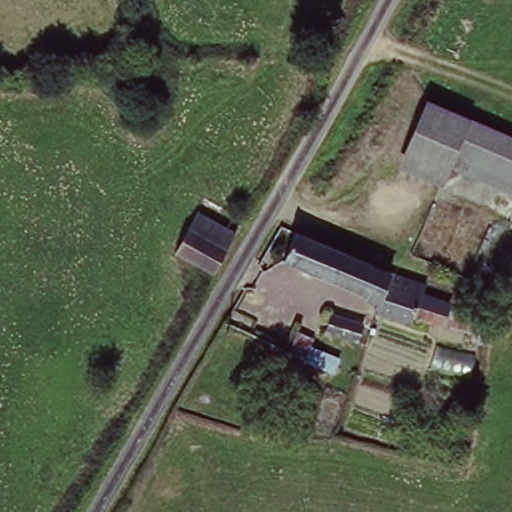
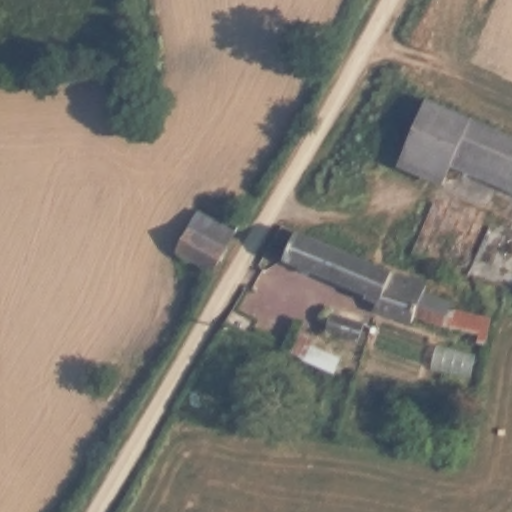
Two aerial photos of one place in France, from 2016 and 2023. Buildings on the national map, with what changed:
unchanged [(421,96),(512,137),(512,199),(398,149),(421,96)]
unchanged [(234,235),(203,292),(164,271),(196,214),(234,235)]
unchanged [(424,288),(422,297),(443,310),(490,329),(484,369),(472,365),(474,349),(413,320),(406,329),(372,312),(374,306),(360,300),(362,292),(279,254),(292,228),(300,232),(424,288)]
unchanged [(362,328),(355,349),(316,334),(326,312),(362,328)]

